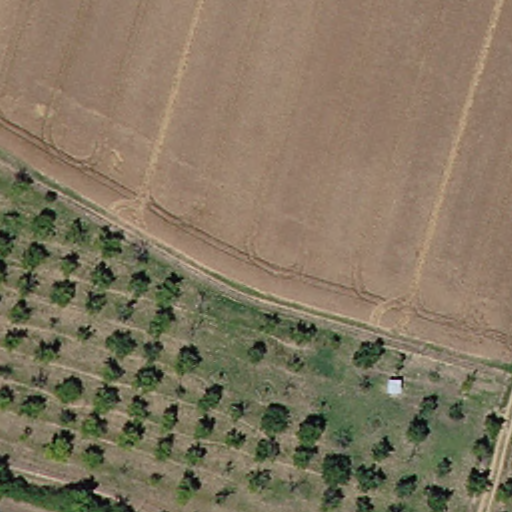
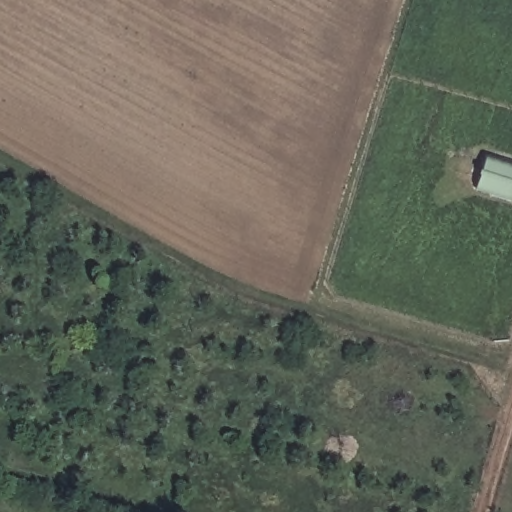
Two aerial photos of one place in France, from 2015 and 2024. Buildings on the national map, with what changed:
new [(477,186),(485,157),(512,166),(512,197),(477,186)]

